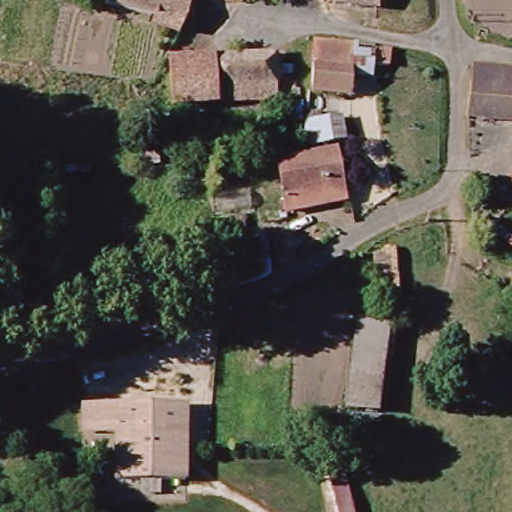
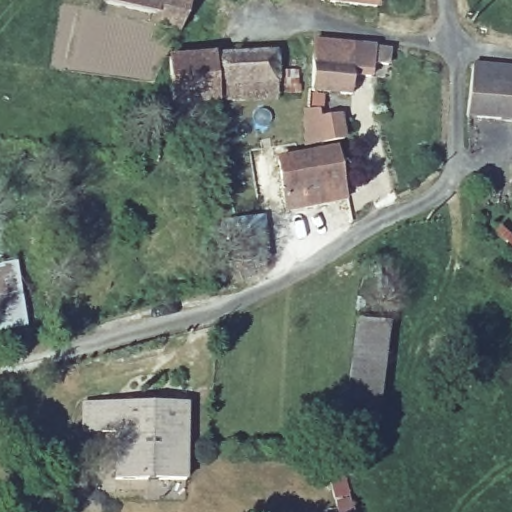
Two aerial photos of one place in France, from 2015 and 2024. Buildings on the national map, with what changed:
unchanged [(153,27),(94,12),(98,0),(158,0),(153,27)]
unchanged [(188,19),(180,36),(153,27),(158,0),(191,0),(188,19)]
unchanged [(373,69),(357,68),(355,84),(338,84),(337,92),(299,89),(303,40),(379,47),(373,69)]
unchanged [(200,103),(167,103),(168,54),(268,52),(270,99),(200,103)]
unchanged [(460,114),(464,63),(504,65),(512,65),(512,118),(460,114)]
unchanged [(303,119),(319,120),(318,130),(339,126),(340,146),(299,153),(303,119)]
unchanged [(270,170),(293,165),(330,157),(336,193),(318,197),(320,209),(294,214),(292,204),(277,207),(270,170)]
unchanged [(53,220),(65,286),(40,293),(28,225),(53,220)]
new [(26,328),(0,332),(0,262),(16,259),(26,328)]
unchanged [(389,302),(383,387),(349,385),(355,300),(389,302)]
unchanged [(183,405),(180,482),(110,480),(112,429),(79,429),(80,402),(183,405)]
unchanged [(337,512),(325,466),(342,461),(355,512),(337,512)]

